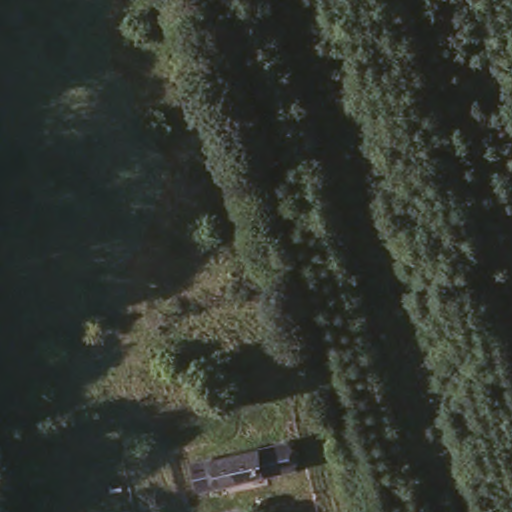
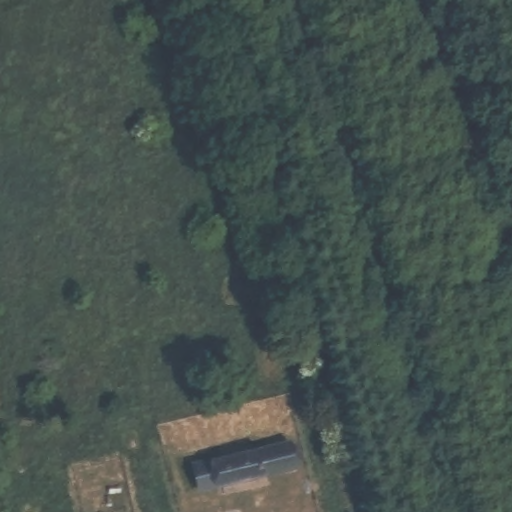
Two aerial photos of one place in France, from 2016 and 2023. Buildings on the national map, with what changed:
unchanged [(216,465),(261,452),(281,445),(289,442),(295,467),(287,469),(266,475),(222,489),(202,495),(195,470),(216,465)]

